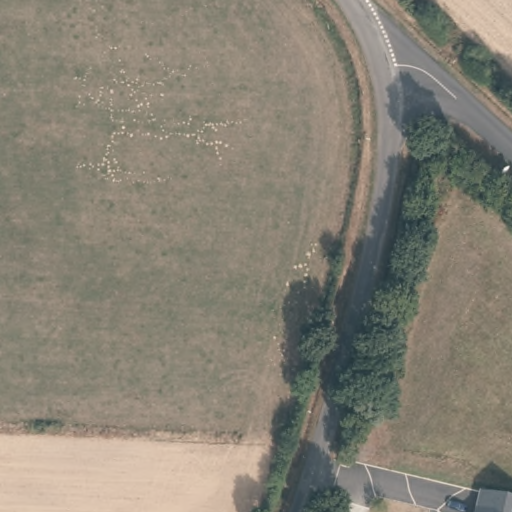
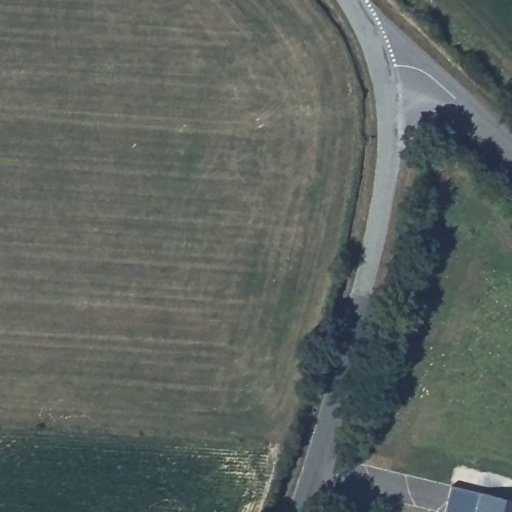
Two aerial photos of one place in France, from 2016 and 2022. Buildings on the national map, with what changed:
unchanged [(486,489),(512,495),(512,512),(474,512),(478,487),(486,489)]

